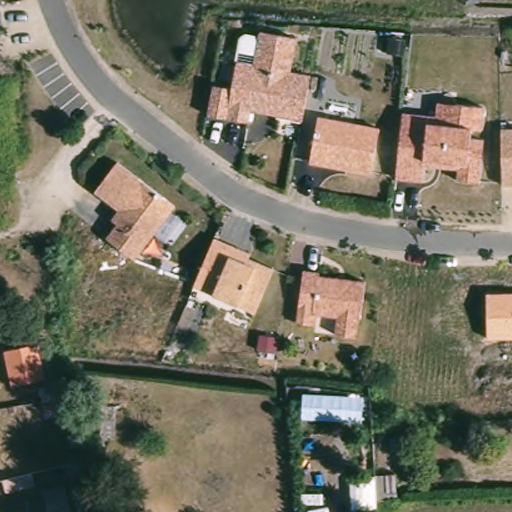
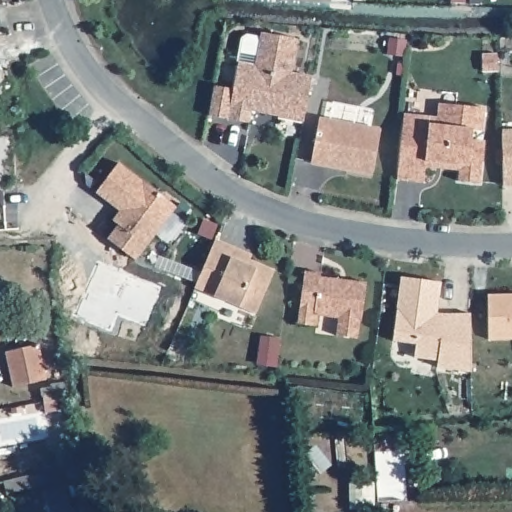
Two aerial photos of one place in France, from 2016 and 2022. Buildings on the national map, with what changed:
unchanged [(291,72),(311,76),(302,122),(277,117),(278,116),(251,111),(249,122),(229,117),(231,108),(230,107),(239,62),(255,65),(262,32),(297,38),(291,72)]
unchanged [(481,129),(470,127),(470,137),(483,138),(479,184),(456,182),(458,167),(424,165),(422,182),(396,180),(402,113),(434,117),(436,102),(484,107),(481,129)]
unchanged [(377,130),(371,178),(310,167),(317,119),(377,130)]
unchanged [(512,129),(512,184),(502,184),(498,129),(512,129)]
unchanged [(119,211),(96,192),(119,162),(176,206),(134,261),(106,239),(117,225),(112,221),(119,211)]
unchanged [(215,239),(234,247),(233,251),(274,268),(255,311),(194,286),(195,283),(214,239),(215,239)]
unchanged [(303,272),(319,273),(319,277),(365,283),(360,321),(358,321),(356,339),(335,336),(337,318),(317,316),(315,327),(296,323),(297,313),(303,272)]
new [(440,282),(437,313),(469,314),(470,372),(435,367),(436,361),(413,357),(414,344),(392,342),(399,277),(440,282)]
unchanged [(512,293),(512,340),(486,341),(486,293),(512,293)]
unchanged [(46,381),(17,387),(9,353),(40,347),(46,381)]
unchanged [(405,452),(389,453),(389,439),(405,438),(405,452)]
unchanged [(68,512),(44,512),(41,499),(63,493),(68,512)]

